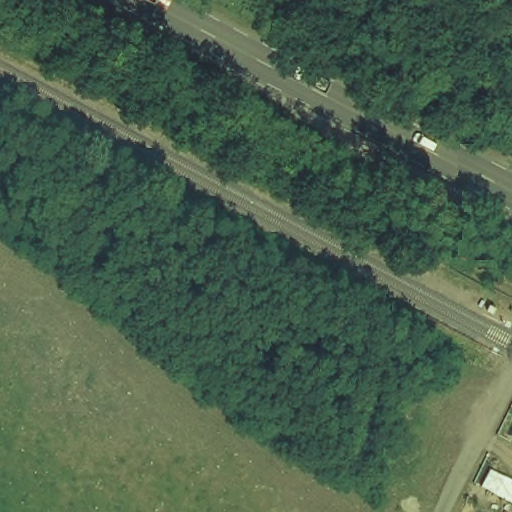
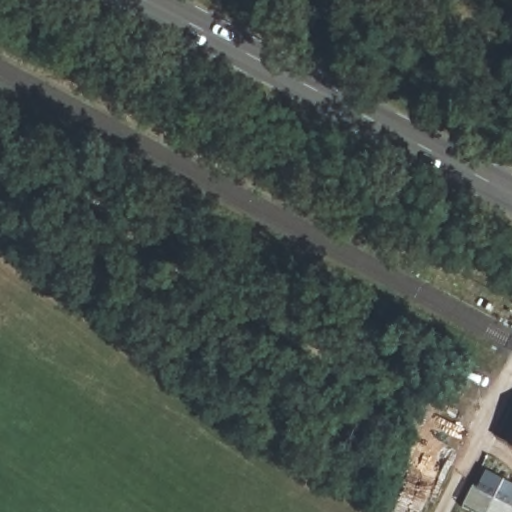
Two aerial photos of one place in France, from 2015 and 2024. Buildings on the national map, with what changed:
new [(460,509),(471,486),(476,490),(486,472),(512,485),(512,512),(467,512),(460,509)]

